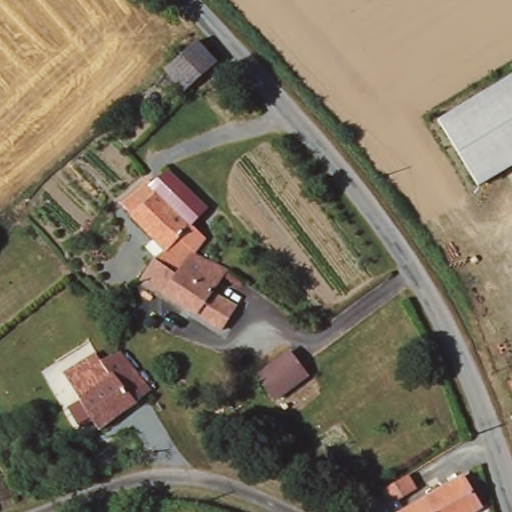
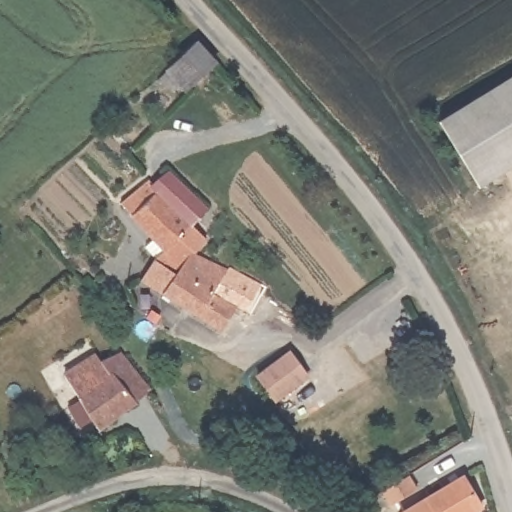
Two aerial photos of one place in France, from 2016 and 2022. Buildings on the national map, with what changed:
unchanged [(191,108),(170,85),(189,68),(204,55),(213,65),(224,77),(191,108)]
unchanged [(439,119),(512,75),(512,167),(478,187),(439,119)]
unchanged [(214,298),(235,313),(219,333),(160,291),(144,278),(157,260),(169,245),(128,203),(156,175),(160,180),(173,168),(210,208),(199,220),(209,231),(195,248),(231,272),(214,298)]
unchanged [(263,375),(296,354),(298,357),(310,378),(278,400),(274,394),(263,375)]
unchanged [(98,356),(104,363),(124,356),(151,387),(154,390),(155,392),(135,407),(105,432),(83,400),(66,377),(98,356)]
unchanged [(484,508),(478,512),(413,512),(466,479),(484,508)]
unchanged [(398,512),(375,512),(373,509),(400,493),(408,506),(398,512)]

